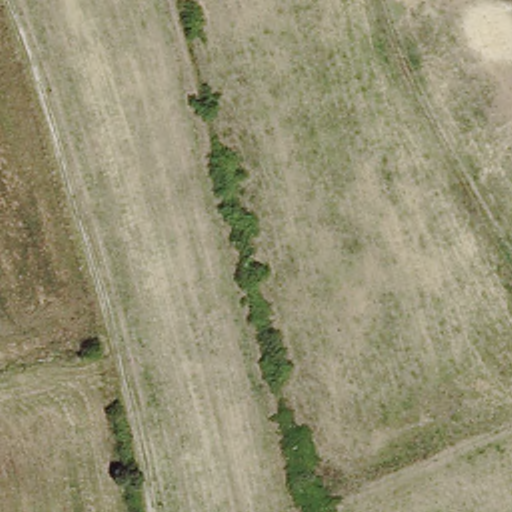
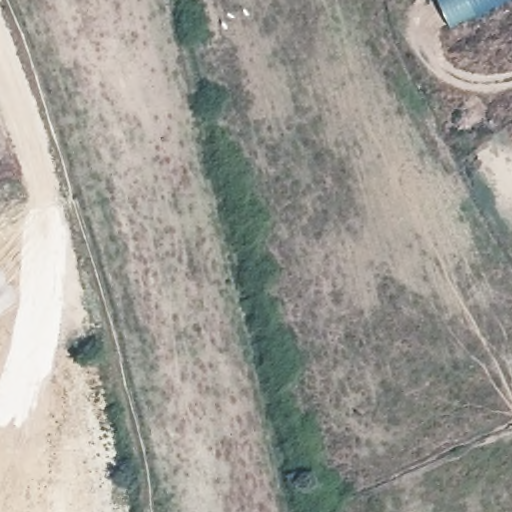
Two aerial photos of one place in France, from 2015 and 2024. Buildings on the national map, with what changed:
new [(454,30),(438,0),(508,0),(454,30)]

